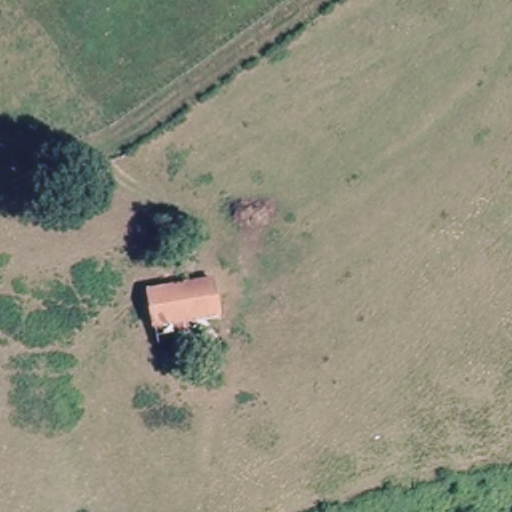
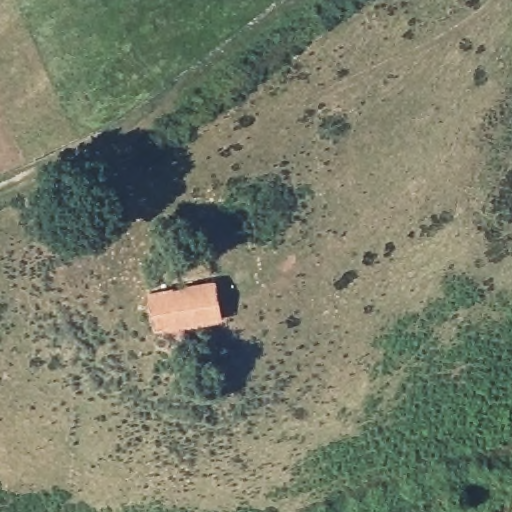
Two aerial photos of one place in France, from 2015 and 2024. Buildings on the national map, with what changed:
unchanged [(216,275),(223,321),(158,334),(150,292),(216,275)]

